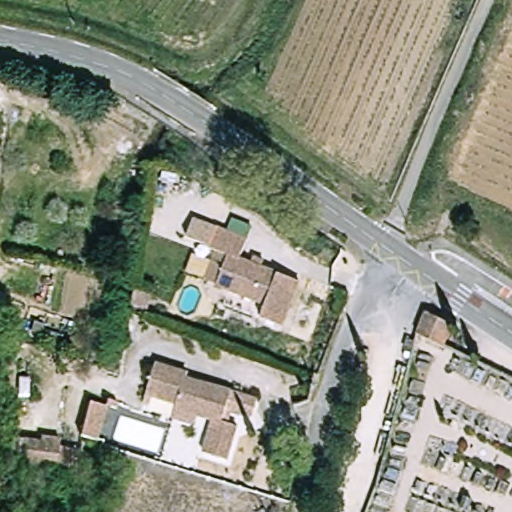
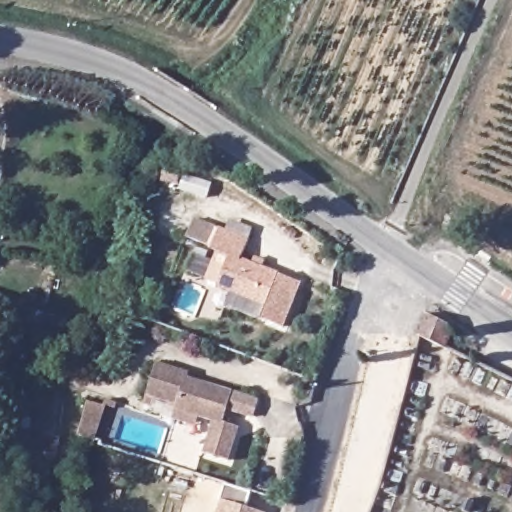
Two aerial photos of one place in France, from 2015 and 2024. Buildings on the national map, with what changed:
unchanged [(222,232),(253,242),(246,262),(306,284),(290,329),(269,322),(274,307),(224,290),(234,260),(215,252),(216,251),(192,242),(198,223),(222,232)]
unchanged [(458,327),(447,350),(421,337),(432,312),(458,327)]
unchanged [(176,423),(179,412),(181,407),(149,397),(159,366),(190,376),(189,380),(261,402),(256,420),(232,412),(228,426),(243,430),(232,462),(209,455),(218,423),(202,418),(198,430),(176,423)]
unchanged [(95,401),(110,405),(111,405),(110,411),(103,439),(86,435),(95,401)]
unchanged [(29,441),(48,442),(48,438),(66,440),(66,446),(88,450),(83,472),(28,462),(29,441)]
new [(251,492),(248,508),(259,512),(219,512),(222,501),(226,486),(251,492)]

